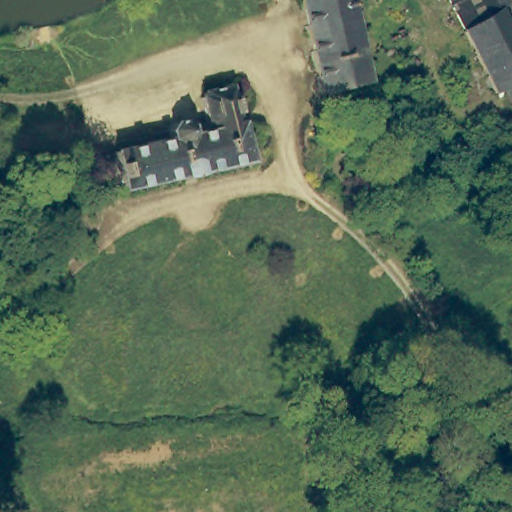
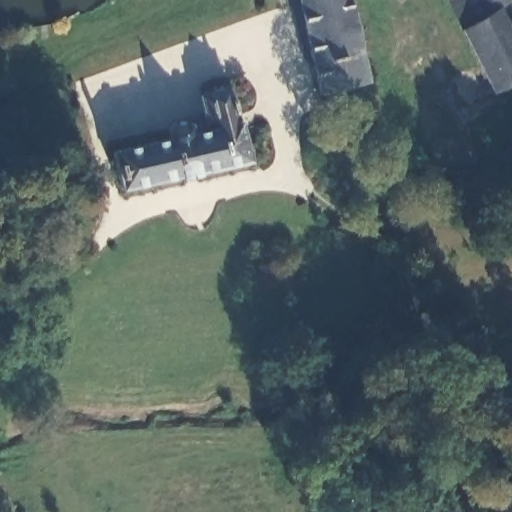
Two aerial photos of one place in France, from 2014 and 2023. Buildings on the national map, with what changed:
unchanged [(368,78),(317,90),(297,0),(348,0),(368,78)]
unchanged [(508,22),(512,29),(512,85),(503,89),(496,93),(466,32),(469,31),(447,0),(492,0),(508,22)]
unchanged [(172,136),(172,131),(175,125),(180,121),(186,119),(192,119),(197,121),(211,119),(206,93),(212,92),(212,86),(236,80),(254,158),(126,189),(117,149),(172,136)]
unchanged [(503,89),(512,85),(512,107),(503,89)]
unchanged [(19,210),(27,225),(12,233),(4,218),(19,210)]

